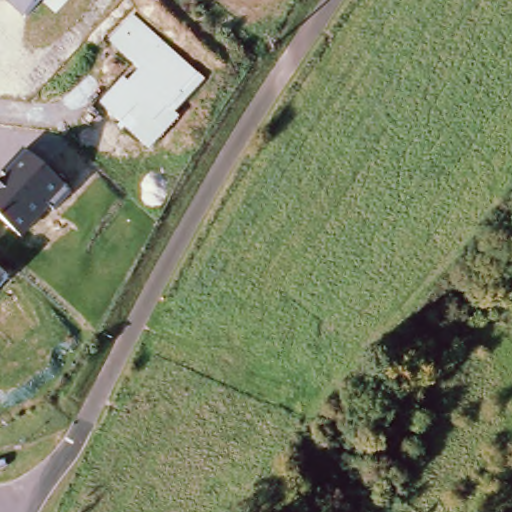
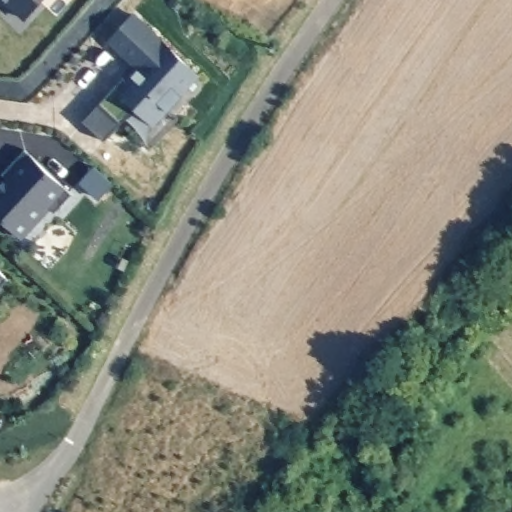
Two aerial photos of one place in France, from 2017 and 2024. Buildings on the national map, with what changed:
unchanged [(25,22),(5,4),(6,1),(5,0),(45,0),(25,22)]
unchanged [(174,114),(180,119),(150,151),(100,103),(123,79),(127,83),(140,69),(110,40),(133,16),(205,82),(174,114)]
unchanged [(6,178),(2,174),(25,151),(28,154),(65,190),(71,195),(54,213),(52,210),(20,238),(0,219),(0,185),(6,178)]
unchanged [(8,280),(0,288),(0,272),(8,280)]

